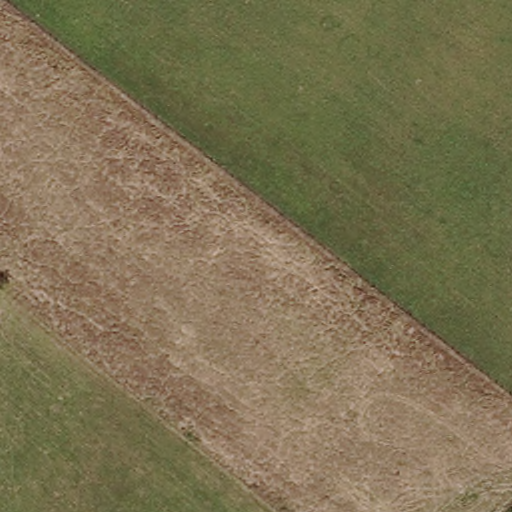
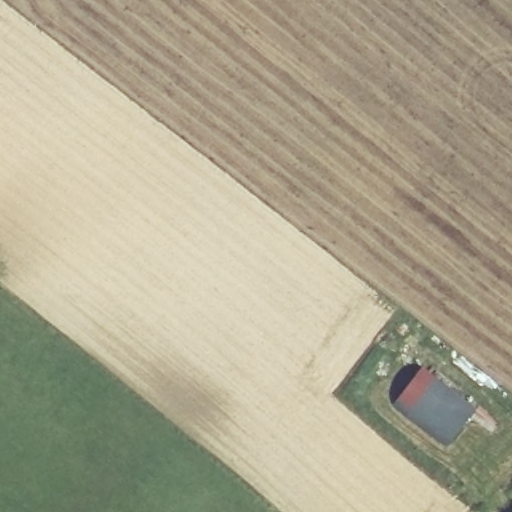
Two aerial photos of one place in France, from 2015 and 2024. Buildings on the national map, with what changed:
new [(447,449),(392,406),(419,368),(475,411),(447,449)]

